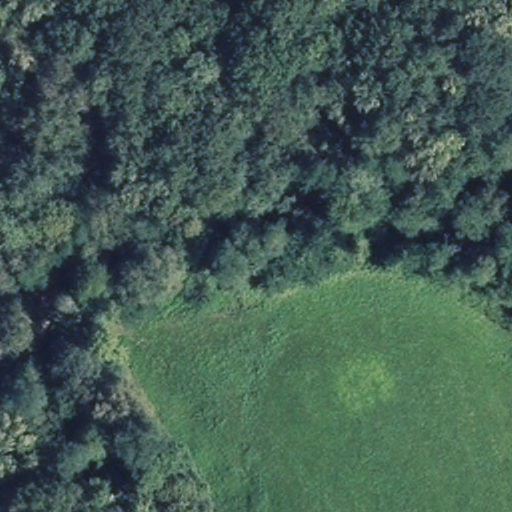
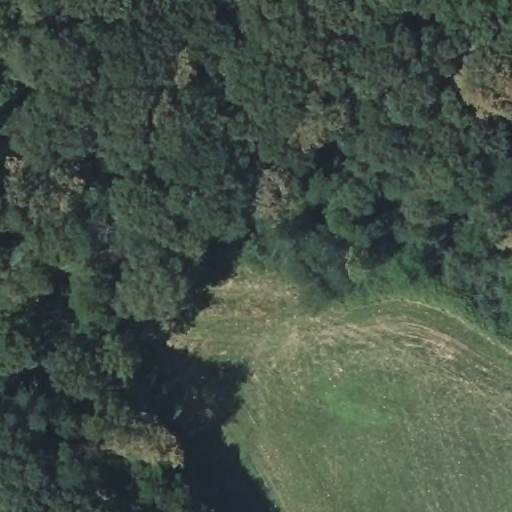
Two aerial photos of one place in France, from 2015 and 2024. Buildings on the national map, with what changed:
[]

